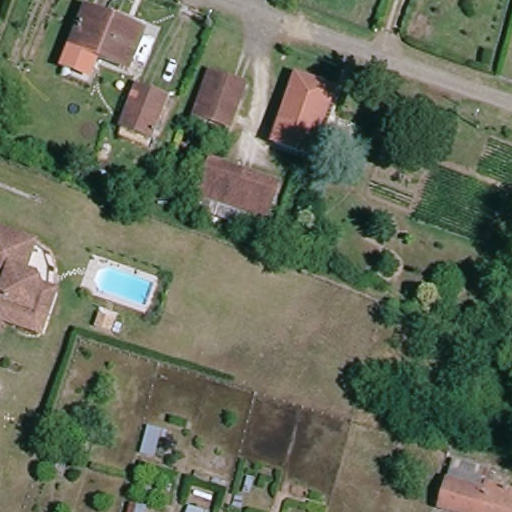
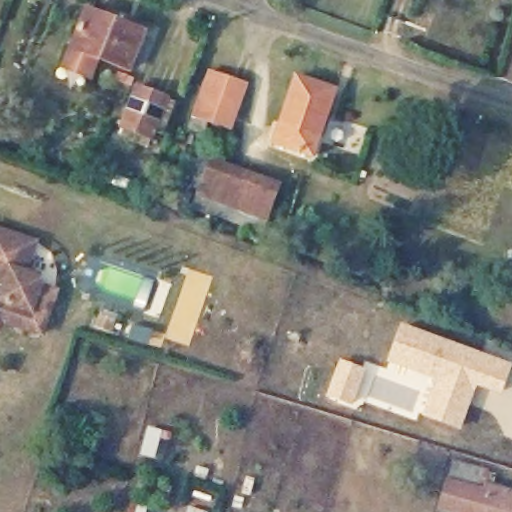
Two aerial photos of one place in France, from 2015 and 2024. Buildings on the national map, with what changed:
unchanged [(85,4),(141,28),(126,64),(96,52),(88,72),(63,61),(85,4)]
unchanged [(244,87),(229,129),(192,115),(207,74),(244,87)]
unchanged [(333,92),(310,156),(272,143),(295,78),(333,92)]
unchanged [(165,100),(149,138),(120,127),(136,88),(165,100)]
unchanged [(280,179),(261,229),(189,203),(207,151),(280,179)]
unchanged [(271,230),(280,233),(276,245),(266,241),(271,230)]
unchanged [(2,333),(0,332),(0,300),(4,301),(10,284),(0,281),(0,231),(41,245),(30,276),(41,280),(46,289),(61,295),(52,318),(45,338),(18,328),(6,323),(2,333)]
unchanged [(108,330),(95,326),(99,314),(112,318),(108,330)]
new [(512,363),(512,364),(501,394),(477,385),(460,430),(420,414),(432,380),(386,362),(401,322),(512,363)]
new [(339,359),(365,368),(352,405),(327,395),(339,359)]
unchanged [(453,463),(484,472),(485,475),(491,476),(490,485),(512,492),(512,512),(455,512),(440,508),(453,463)]
unchanged [(128,503),(145,507),(143,512),(126,512),(128,503)]

